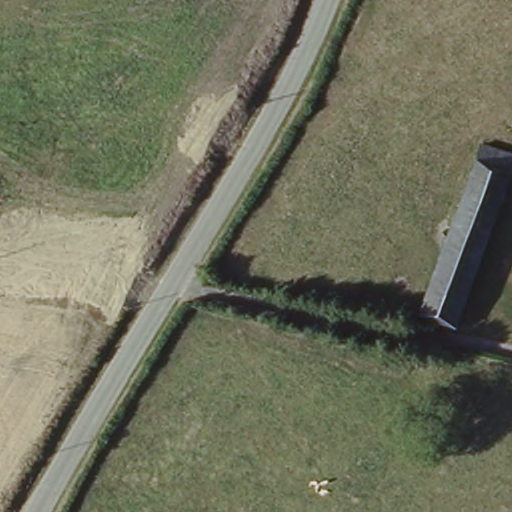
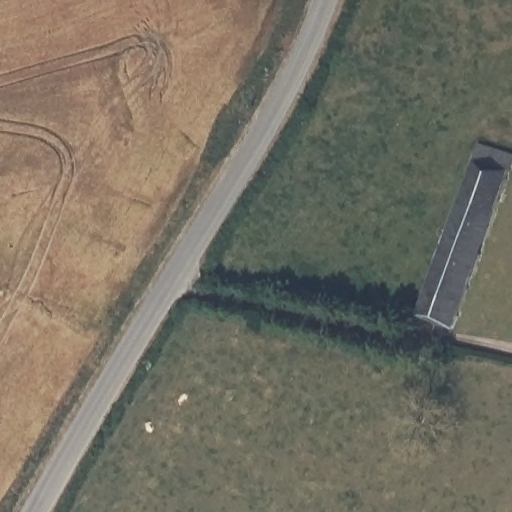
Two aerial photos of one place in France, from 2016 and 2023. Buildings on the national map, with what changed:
unchanged [(419,307),(476,153),(482,137),(512,148),(512,170),(455,320),(419,307)]

